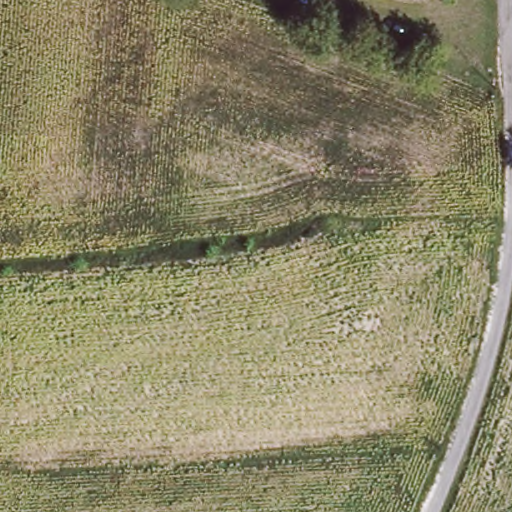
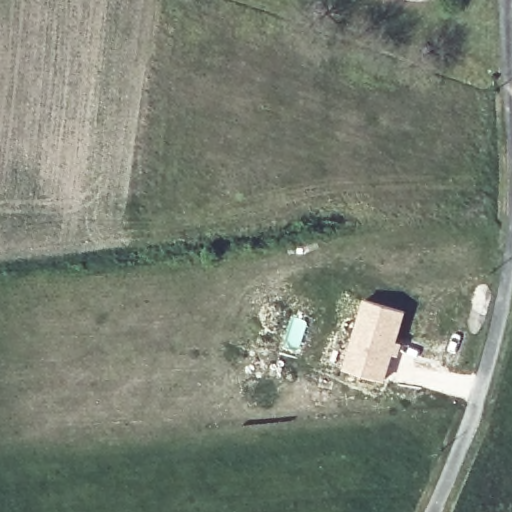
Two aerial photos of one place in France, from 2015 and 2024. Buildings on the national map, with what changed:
new [(364,297),(407,309),(385,382),(342,369),(364,297)]

